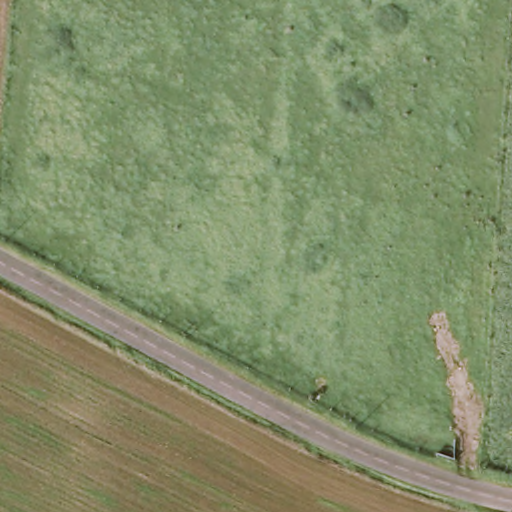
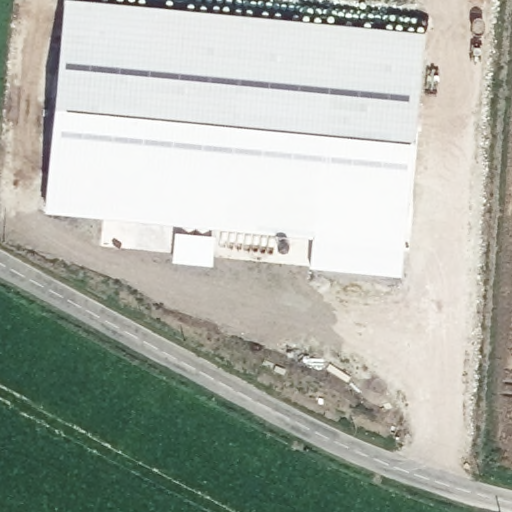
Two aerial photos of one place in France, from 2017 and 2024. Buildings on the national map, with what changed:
new [(310,266),(312,236),(45,211),(64,0),(118,0),(425,29),(402,274),(310,266)]

